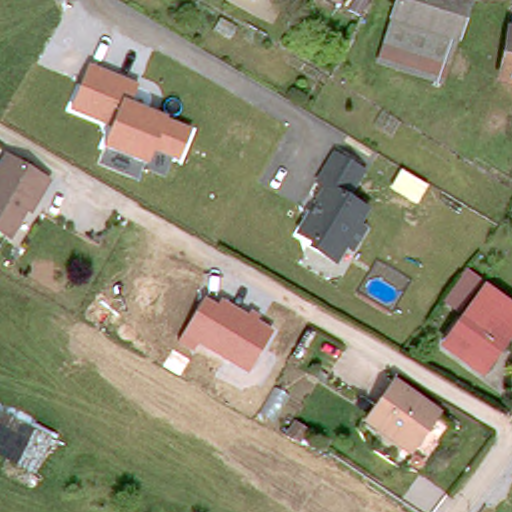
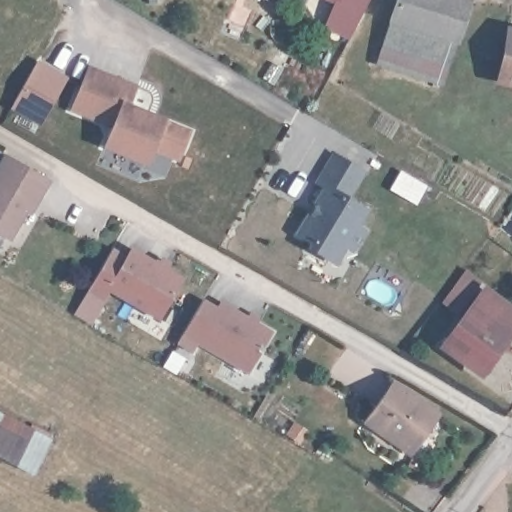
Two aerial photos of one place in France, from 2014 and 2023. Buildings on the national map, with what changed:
unchanged [(332,0),(341,0),(340,4),(332,0)]
demolished [(348,11),(354,0),(370,0),(361,16),(348,11)]
unchanged [(393,20),(400,0),(459,0),(466,2),(455,41),(393,20)]
unchanged [(440,85),(380,65),(393,20),(455,41),(440,85)]
unchanged [(512,85),(501,82),(510,31),(512,31),(512,85)]
new [(38,62),(60,75),(66,79),(43,119),(15,102),(25,85),(38,62)]
unchanged [(140,85),(132,104),(192,129),(179,162),(153,152),(148,165),(102,149),(110,126),(70,110),(87,65),(140,85)]
unchanged [(0,230),(0,155),(2,151),(47,176),(12,236),(0,230)]
unchanged [(311,249),(314,245),(300,235),(328,188),(320,183),(335,155),(364,172),(348,199),(367,211),(358,227),(365,231),(354,251),(346,245),(335,263),(311,249)]
new [(403,172),(427,187),(418,202),(393,189),(403,172)]
new [(126,252),(130,246),(158,261),(161,255),(172,261),(168,267),(183,275),(158,318),(110,290),(103,300),(87,290),(112,246),(126,252)]
unchanged [(459,318),(443,307),(468,274),(483,285),(459,318)]
unchanged [(217,305),(221,298),(247,315),(250,309),(261,316),(259,322),(273,330),(248,373),(196,346),(191,353),(176,345),(203,296),(217,305)]
unchanged [(485,296),(512,315),(512,335),(481,377),(445,352),(485,296)]
unchanged [(384,432),(367,421),(395,381),(441,412),(425,436),(414,453),(384,432)]
unchanged [(0,448),(0,408),(52,435),(49,440),(35,466),(0,448)]

